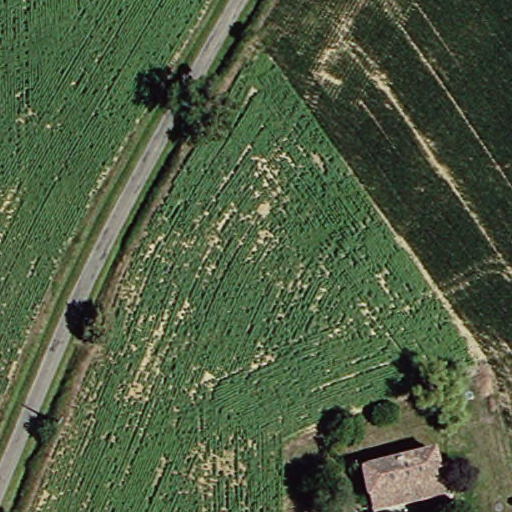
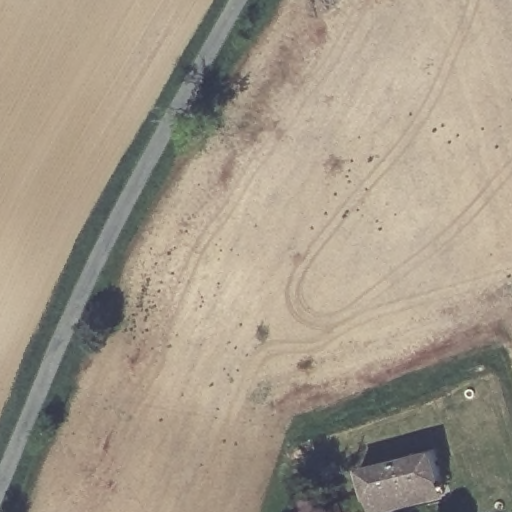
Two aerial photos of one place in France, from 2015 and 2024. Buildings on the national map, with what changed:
unchanged [(372,508),(360,479),(431,446),(445,475),(372,508)]
unchanged [(452,489),(399,512),(374,512),(372,508),(445,475),(452,489)]

